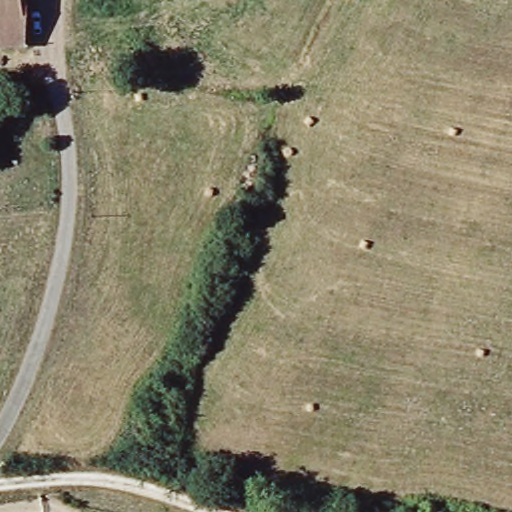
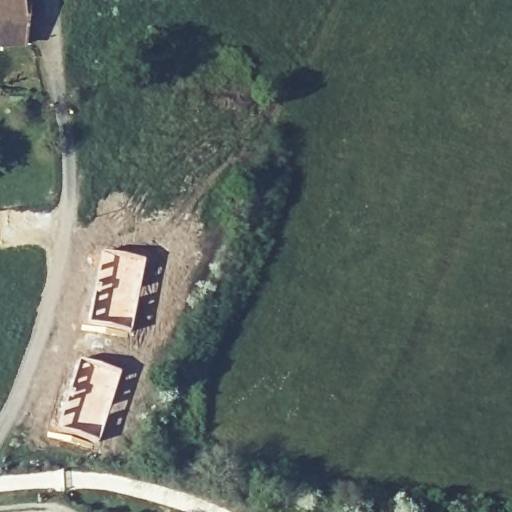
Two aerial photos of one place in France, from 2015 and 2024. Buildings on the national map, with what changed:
unchanged [(0,48),(0,0),(19,0),(20,48),(0,48)]
new [(102,250),(145,260),(131,333),(89,323),(102,250)]
new [(80,360),(120,374),(100,441),(87,438),(90,431),(82,429),(81,432),(73,429),(76,418),(74,418),(75,412),(66,409),(80,360)]

